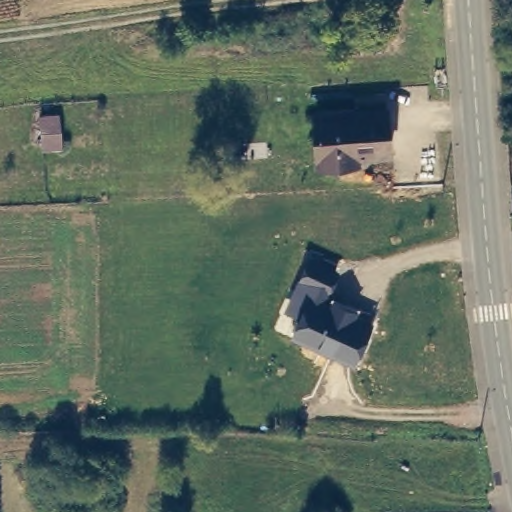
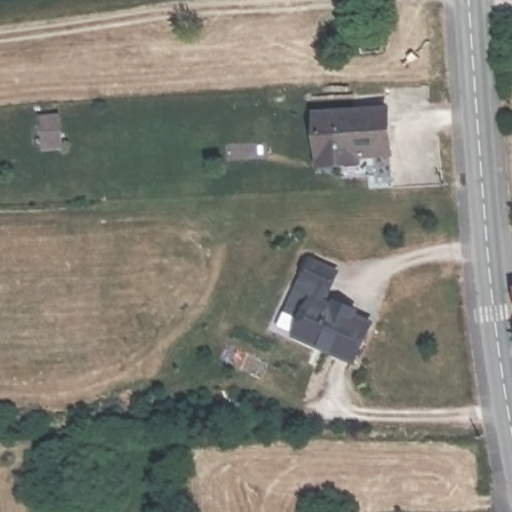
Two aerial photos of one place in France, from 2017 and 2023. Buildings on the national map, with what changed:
unchanged [(340,171),(319,172),(317,120),(388,116),(391,159),(357,162),(357,170),(340,171)]
unchanged [(59,121),(60,147),(43,148),(42,120),(59,121)]
unchanged [(338,272),(326,300),(332,304),(335,300),(356,310),(355,314),(374,322),(357,366),(290,335),(298,319),(279,310),(306,257),(338,272)]
unchanged [(512,289),(511,284),(512,283),(512,289)]

